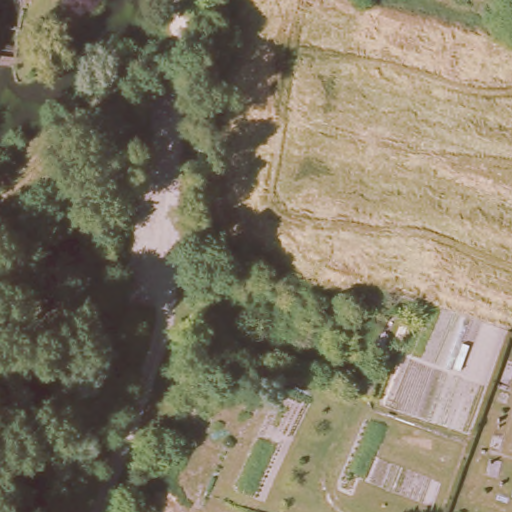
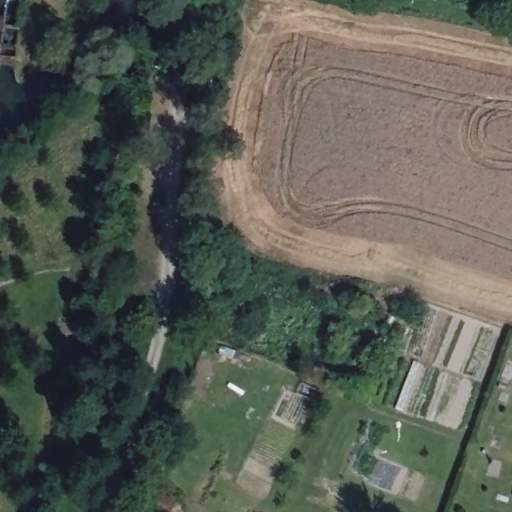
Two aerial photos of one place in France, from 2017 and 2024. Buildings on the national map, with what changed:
unchanged [(48,16),(51,0),(72,0),(70,19),(48,16)]

